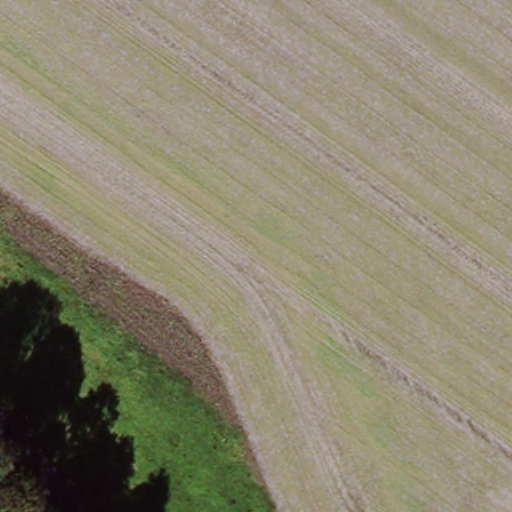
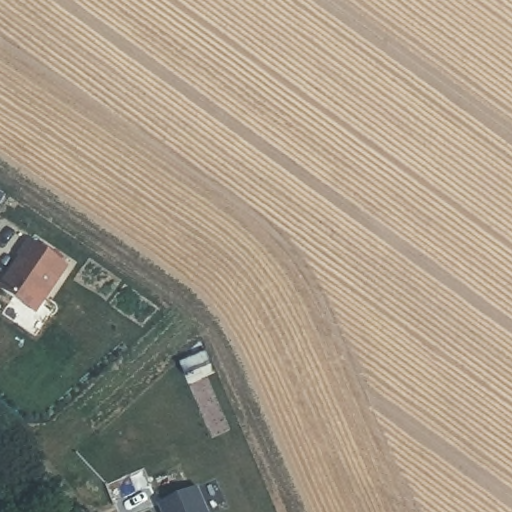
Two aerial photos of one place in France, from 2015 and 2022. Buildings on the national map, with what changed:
new [(4,200),(0,206),(0,197),(4,200)]
new [(26,264),(24,263),(33,249),(70,273),(40,319),(5,296),(26,264)]
new [(199,488),(210,512),(162,512),(160,507),(199,488)]

